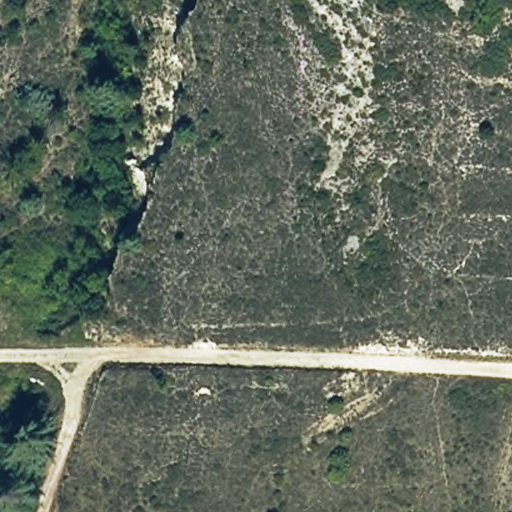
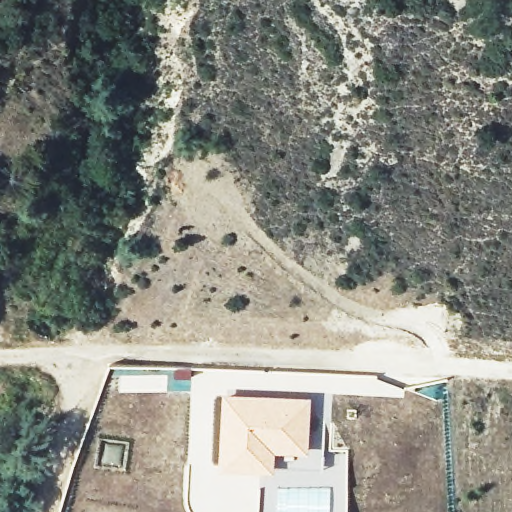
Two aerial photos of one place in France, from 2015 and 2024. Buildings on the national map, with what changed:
new [(224,395),(312,397),(311,453),(277,452),(276,472),(220,469),(224,395)]

